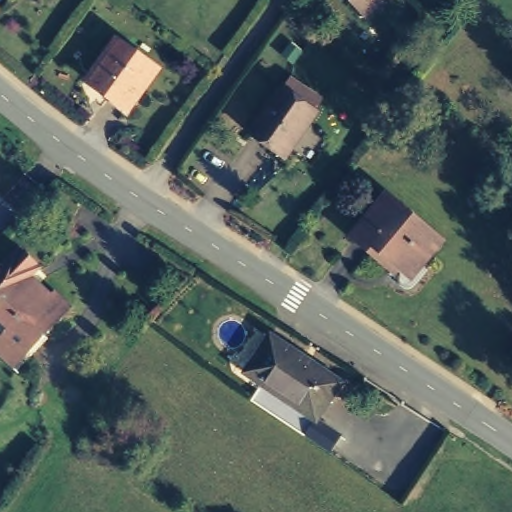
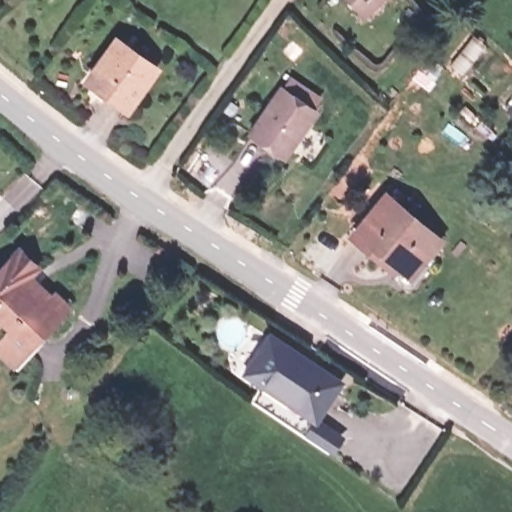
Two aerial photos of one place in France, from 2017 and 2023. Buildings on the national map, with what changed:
unchanged [(367,15),(354,0),(385,0),(367,15)]
unchanged [(314,43),(304,53),(288,42),(298,29),(314,43)]
unchanged [(148,66),(118,106),(83,79),(114,41),(148,66)]
unchanged [(314,107),(281,152),(248,127),(279,82),(314,107)]
unchanged [(434,235),(412,266),(394,253),(387,261),(350,234),(380,195),(434,235)]
unchanged [(0,334),(1,332),(0,331),(0,267),(18,248),(38,266),(30,274),(54,300),(61,292),(73,306),(23,355),(11,366),(0,355),(0,334)]
unchanged [(336,375),(310,412),(241,365),(269,327),(336,375)]

